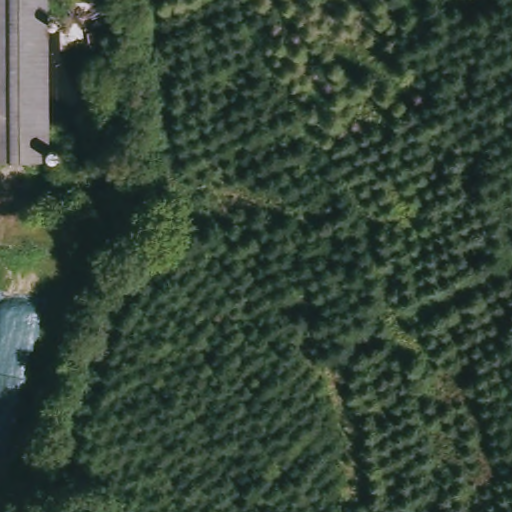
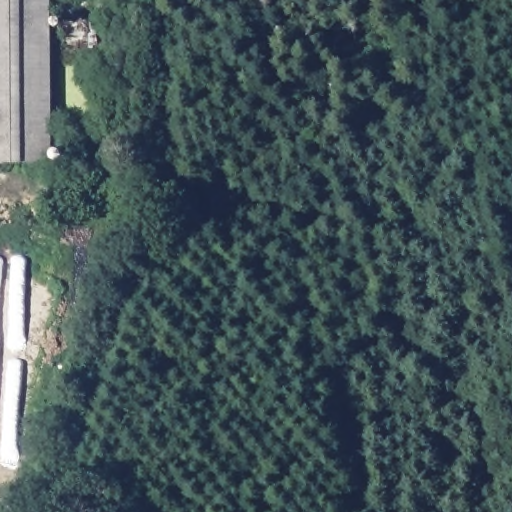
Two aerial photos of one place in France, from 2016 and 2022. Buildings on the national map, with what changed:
unchanged [(62,20),(66,23),(64,28),(57,36),(59,140),(66,151),(69,154),(66,161),(59,162),(59,164),(0,162),(0,0),(56,0),(56,10),(62,20)]

